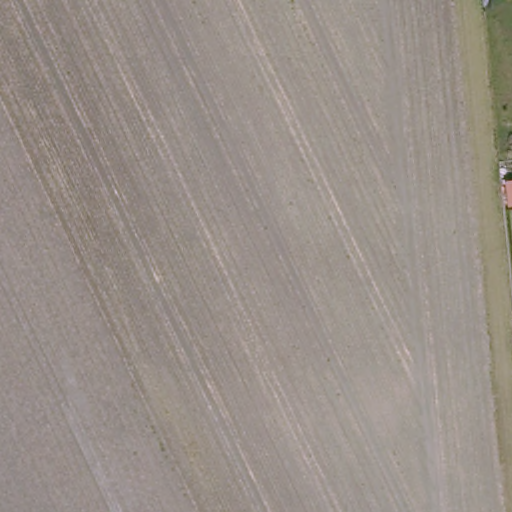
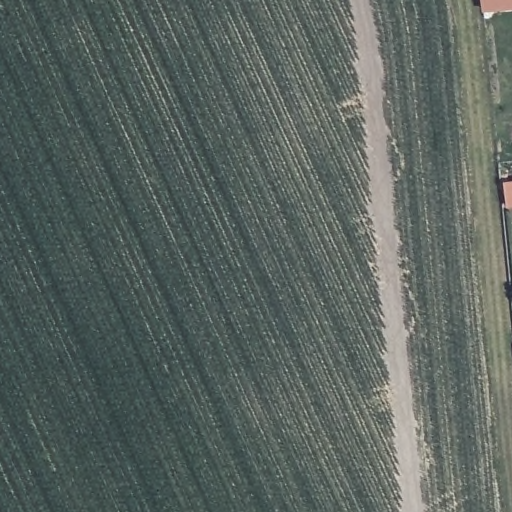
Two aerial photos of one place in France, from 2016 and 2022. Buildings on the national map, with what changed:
new [(512,11),(483,13),(481,0),(512,0),(512,11)]
unchanged [(512,178),(512,204),(506,204),(503,179),(512,178)]

